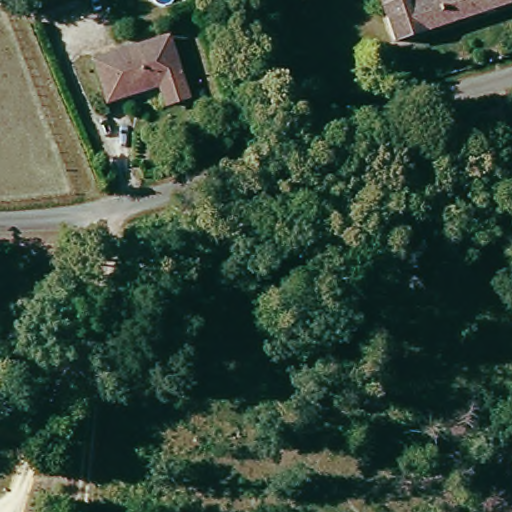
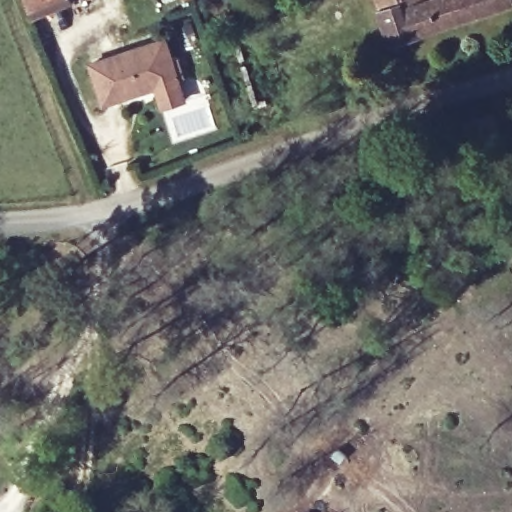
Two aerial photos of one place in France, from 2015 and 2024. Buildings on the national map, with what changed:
unchanged [(46,12),(43,0),(78,0),(46,12)]
unchanged [(512,3),(401,41),(388,0),(512,0),(512,3)]
unchanged [(168,82),(117,96),(106,56),(179,34),(190,76),(197,97),(173,103),(168,82)]
unchanged [(509,131),(469,148),(461,127),(501,110),(509,131)]

